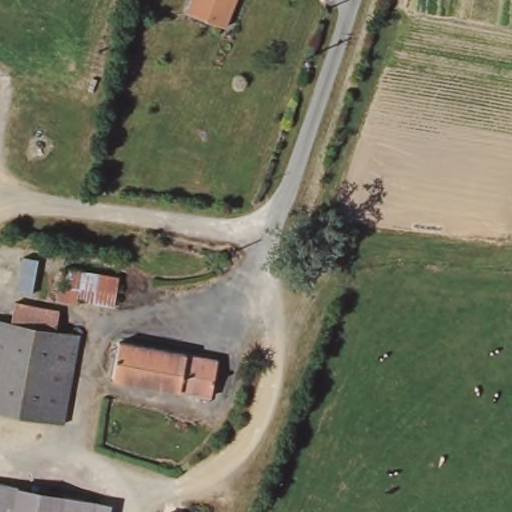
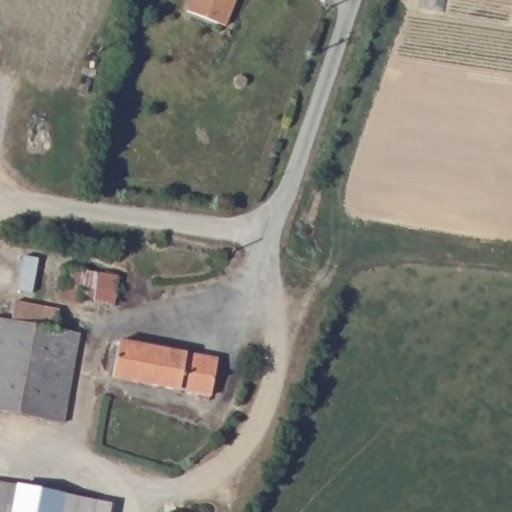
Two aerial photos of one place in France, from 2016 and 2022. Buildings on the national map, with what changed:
unchanged [(195,0),(240,0),(230,27),(190,12),(195,0)]
unchanged [(65,268),(120,276),(114,305),(80,300),(79,305),(60,302),(62,286),(65,268)]
unchanged [(60,310),(57,330),(0,321),(0,300),(60,310)]
unchanged [(0,412),(0,321),(57,330),(81,334),(64,424),(0,412)]
unchanged [(117,342),(216,361),(209,397),(110,378),(117,342)]
unchanged [(108,503),(106,512),(0,512),(0,481),(108,503)]

